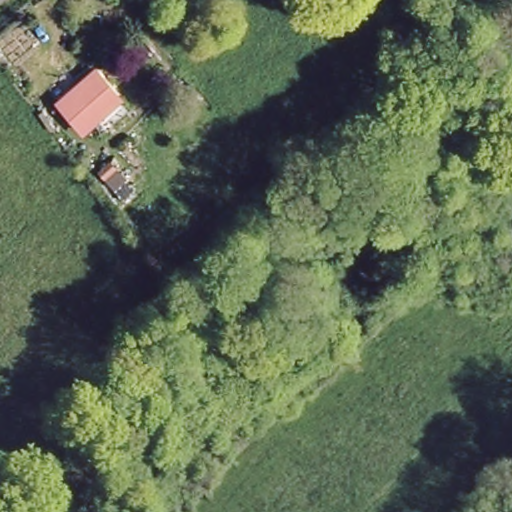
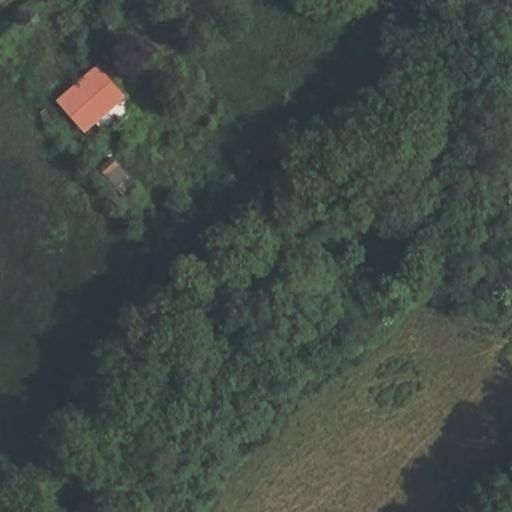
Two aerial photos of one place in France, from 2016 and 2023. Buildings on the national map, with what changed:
unchanged [(76,137),(47,101),(92,64),(120,95),(76,137)]

